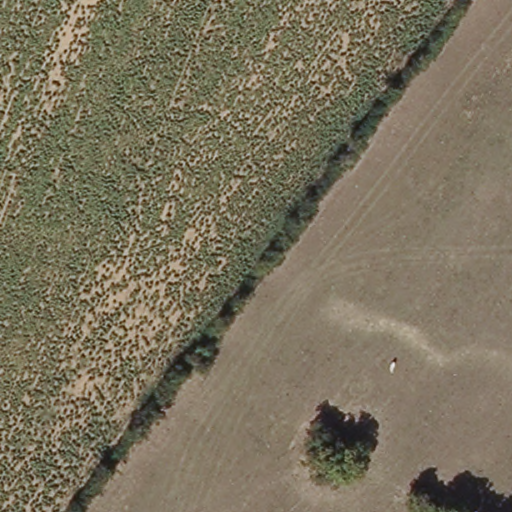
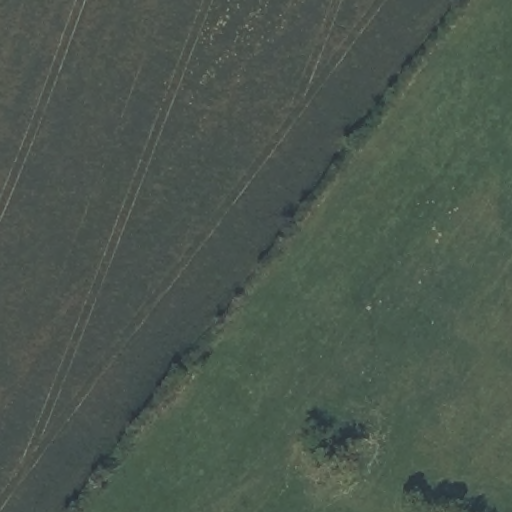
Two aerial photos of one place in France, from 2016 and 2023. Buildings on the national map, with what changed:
[]

